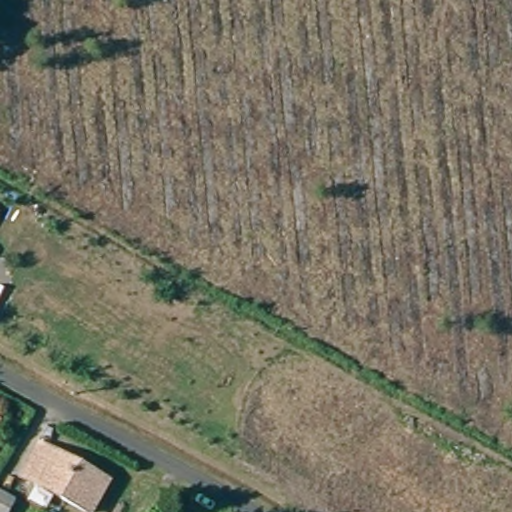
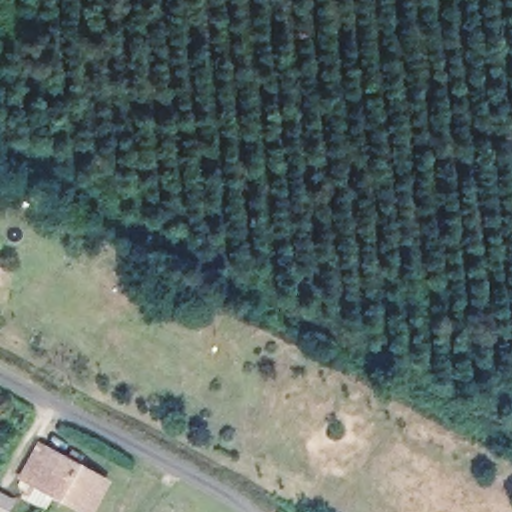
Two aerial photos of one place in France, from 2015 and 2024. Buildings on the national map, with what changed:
unchanged [(105,484),(89,512),(79,512),(22,480),(39,448),(105,484)]
unchanged [(8,512),(0,512),(0,499),(11,506),(8,512)]

